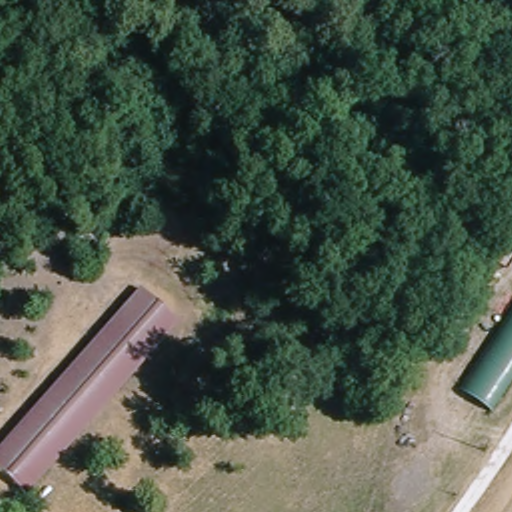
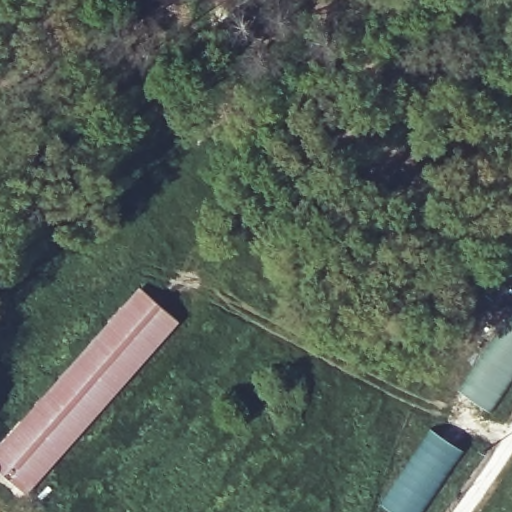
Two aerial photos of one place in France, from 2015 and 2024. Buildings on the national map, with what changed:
unchanged [(364,282),(348,297),(337,286),(352,270),(364,282)]
unchanged [(0,470),(0,447),(135,292),(141,287),(180,321),(27,494),(0,470)]
unchanged [(490,412),(456,390),(512,305),(512,379),(490,412)]
new [(433,430),(463,450),(422,512),(395,512),(383,505),(433,430)]

